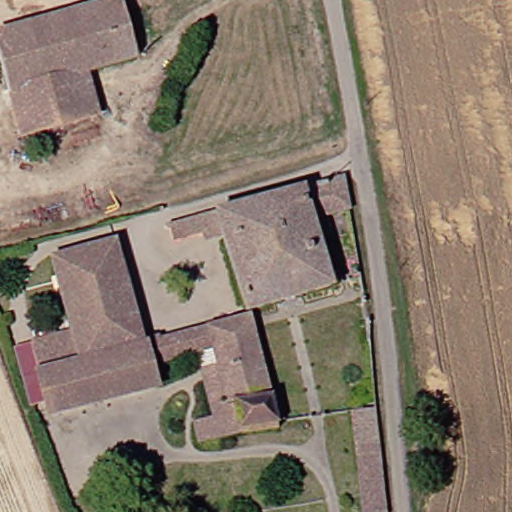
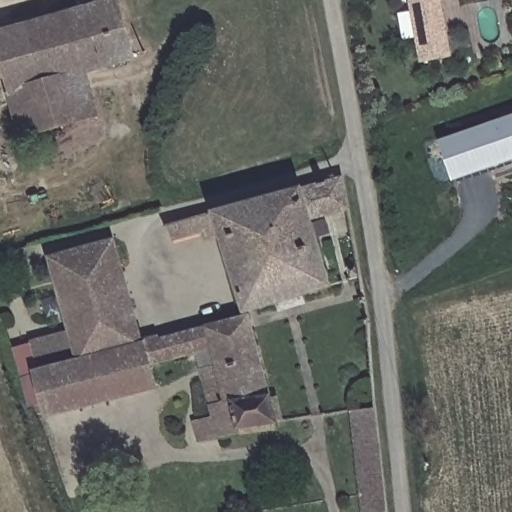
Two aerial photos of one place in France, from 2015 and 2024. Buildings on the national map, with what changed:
unchanged [(94,70),(104,110),(25,134),(0,53),(0,31),(95,0),(124,0),(141,54),(94,70)]
new [(420,62),(409,0),(442,0),(453,56),(420,62)]
new [(512,119),(512,156),(455,177),(444,142),(512,119)]
unchanged [(348,202),(316,211),(332,270),(239,297),(210,210),(340,171),(348,202)]
unchanged [(209,342),(152,358),(160,383),(52,413),(40,371),(79,360),(50,258),(117,239),(142,327),(151,325),(153,331),(205,316),(209,342)]
unchanged [(257,376),(237,307),(256,301),(275,371),(257,376)]
unchanged [(237,307),(257,376),(275,371),(286,410),(233,418),(211,342),(209,342),(205,316),(237,307)]
unchanged [(57,331),(64,351),(37,358),(32,338),(57,331)]
unchanged [(377,404),(389,511),(375,512),(365,512),(354,407),(377,404)]
unchanged [(214,415),(219,432),(200,437),(195,419),(214,415)]

